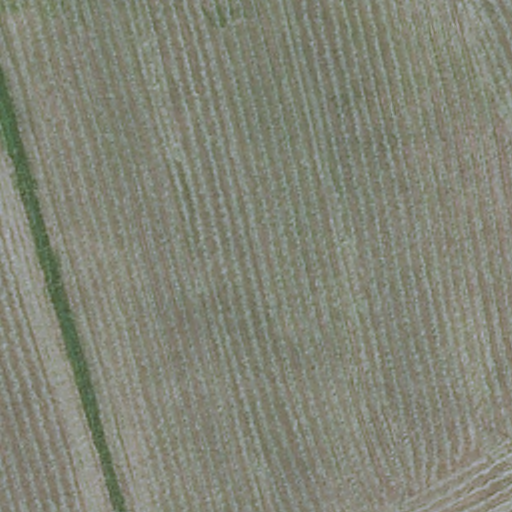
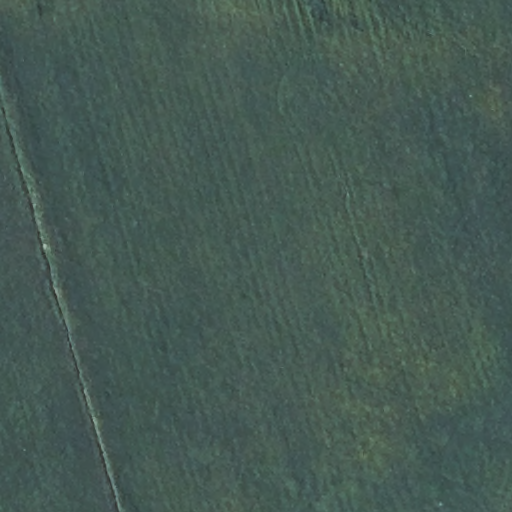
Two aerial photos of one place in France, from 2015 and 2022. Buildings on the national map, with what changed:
[]

